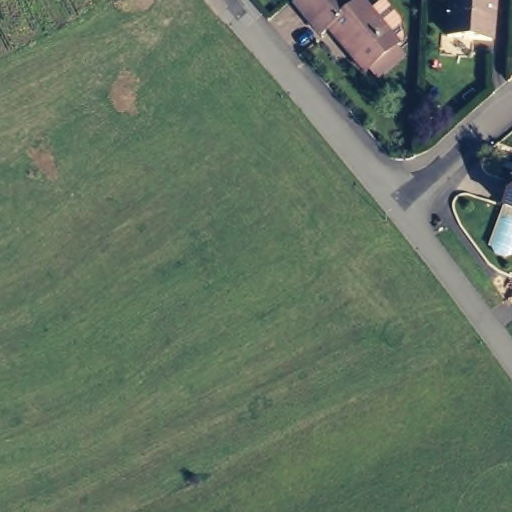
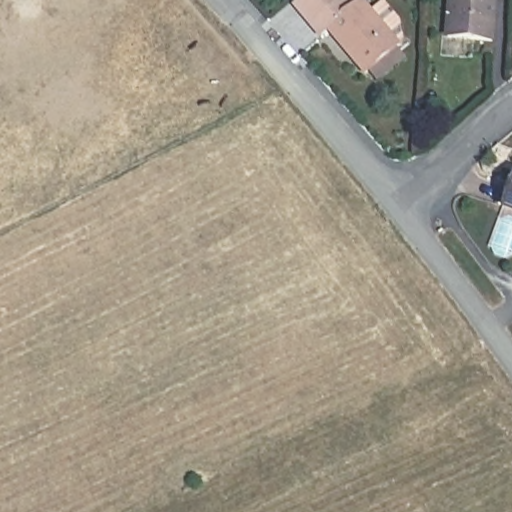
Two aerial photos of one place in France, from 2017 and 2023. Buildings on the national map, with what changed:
unchanged [(360,74),(355,77),(339,55),(321,32),(313,39),(289,6),(297,0),(346,0),(352,7),(356,4),(365,16),(377,8),(392,28),(394,44),(390,47),(392,50),(387,52),(395,62),(367,84),(360,74)]
unchanged [(485,1),(481,40),(437,36),(439,0),(479,0),(479,2),(485,1)]
unchanged [(505,211),(512,194),(512,214),(505,211)]

